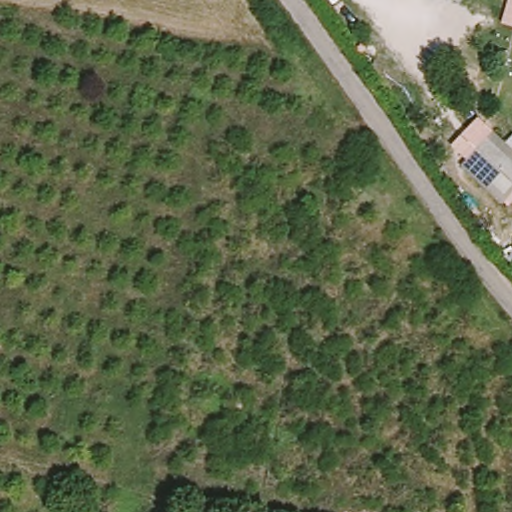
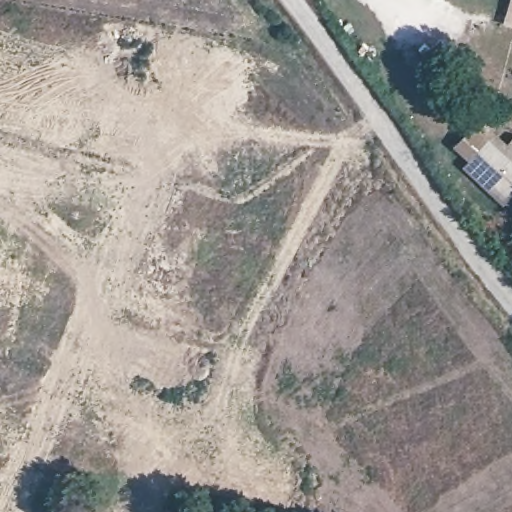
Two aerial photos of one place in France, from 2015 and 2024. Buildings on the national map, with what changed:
unchanged [(512,152),(512,195),(502,207),(459,169),(492,134),(512,152)]

